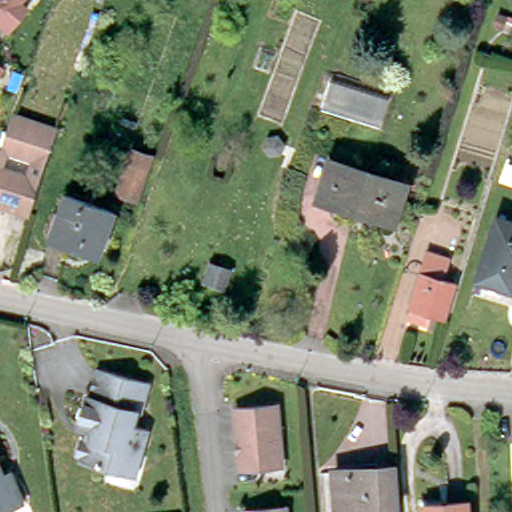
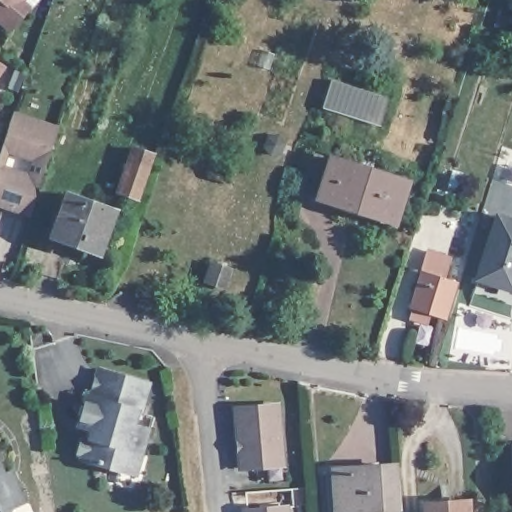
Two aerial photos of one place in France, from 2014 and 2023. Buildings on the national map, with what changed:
unchanged [(5,20),(0,16),(0,0),(21,0),(5,20)]
unchanged [(3,62),(0,67),(0,60),(3,62)]
unchanged [(379,126),(322,107),(331,79),(389,98),(379,126)]
unchanged [(44,166),(30,214),(0,205),(0,152),(13,114),(58,129),(44,166)]
unchanged [(284,144),(281,153),(270,155),(264,146),(268,137),(278,136),(284,144)]
unchanged [(152,155),(137,198),(118,192),(133,148),(152,155)]
unchanged [(406,182),(393,222),(318,198),(330,158),(406,182)]
unchanged [(113,211),(98,254),(51,237),(66,194),(113,211)]
unchanged [(512,290),(512,289),(478,278),(498,217),(512,222),(512,290)]
unchanged [(452,258),(444,279),(456,283),(445,317),(431,313),(428,323),(409,318),(413,308),(411,307),(428,251),(452,258)]
unchanged [(228,270),(223,285),(208,280),(213,265),(228,270)]
unchanged [(81,459),(82,458),(78,452),(81,440),(88,437),(89,429),(78,426),(87,396),(90,397),(98,369),(149,383),(141,412),(137,411),(133,425),(148,429),(141,454),(134,474),(118,470),(81,459)]
unchanged [(241,468),(236,408),(277,405),(282,465),(241,468)]
unchanged [(3,512),(0,512),(0,468),(5,466),(10,477),(18,498),(6,503),(3,512)]
unchanged [(363,475),(363,473),(397,470),(400,512),(337,512),(335,476),(363,475)]
unchanged [(466,502),(467,512),(425,512),(424,505),(466,502)]
unchanged [(244,512),(244,510),(286,507),(286,512),(244,512)]

